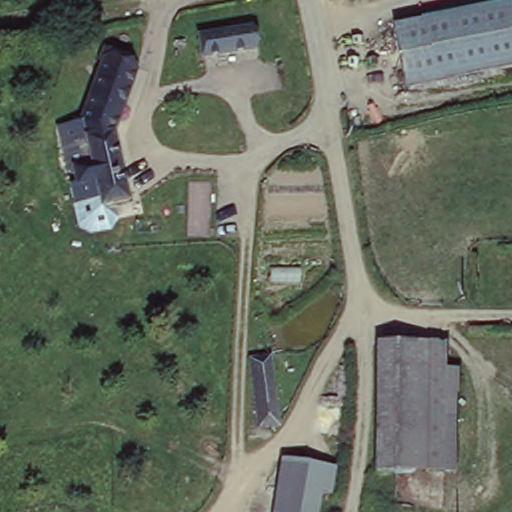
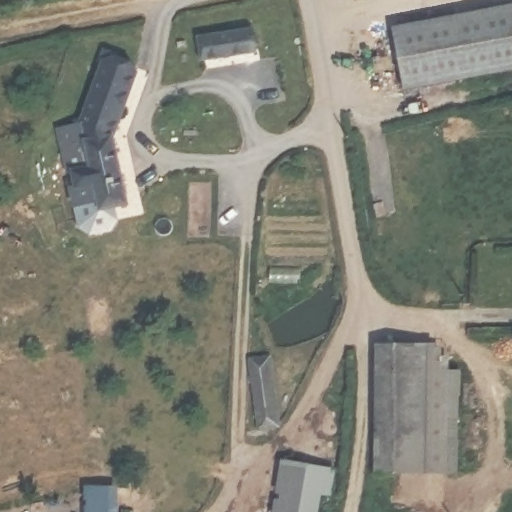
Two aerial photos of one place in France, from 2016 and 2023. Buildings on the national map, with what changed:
unchanged [(505,0),(512,0),(512,66),(403,88),(391,21),(505,0)]
unchanged [(202,37),(253,29),(257,51),(207,60),(202,37)]
unchanged [(92,156),(80,158),(76,136),(88,135),(85,116),(108,58),(103,56),(108,44),(121,49),(115,60),(140,70),(116,130),(129,202),(100,207),(92,156)]
unchanged [(88,135),(76,136),(80,158),(92,156),(97,185),(71,190),(66,165),(59,165),(52,124),(85,116),(88,135)]
unchanged [(375,469),(376,436),(379,343),(429,342),(447,343),(447,393),(457,394),(457,470),(428,470),(375,469)]
unchanged [(251,360),(271,357),(278,426),(257,427),(251,360)]
unchanged [(283,458),(337,465),(333,495),(323,494),(319,512),(277,512),(283,458)]
new [(119,483),(120,506),(118,512),(86,512),(86,482),(119,483)]

